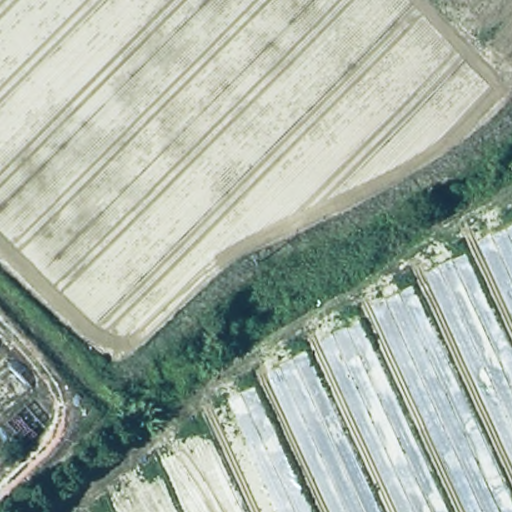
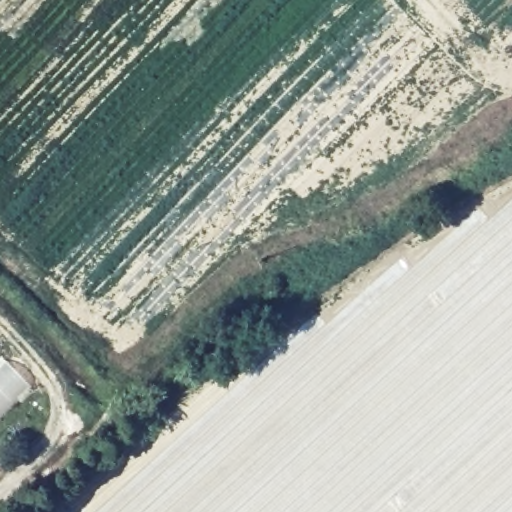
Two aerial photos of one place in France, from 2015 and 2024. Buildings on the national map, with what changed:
unchanged [(29,388),(0,417),(0,358),(29,388)]

